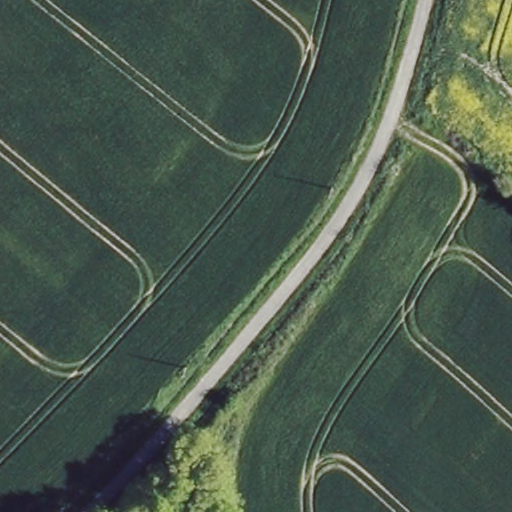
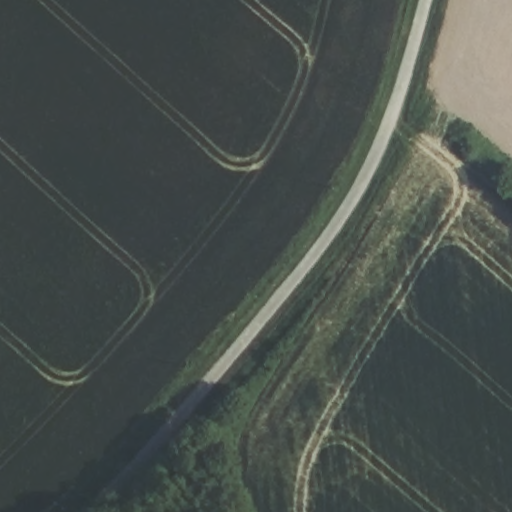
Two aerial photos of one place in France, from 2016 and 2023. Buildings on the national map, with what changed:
[]

